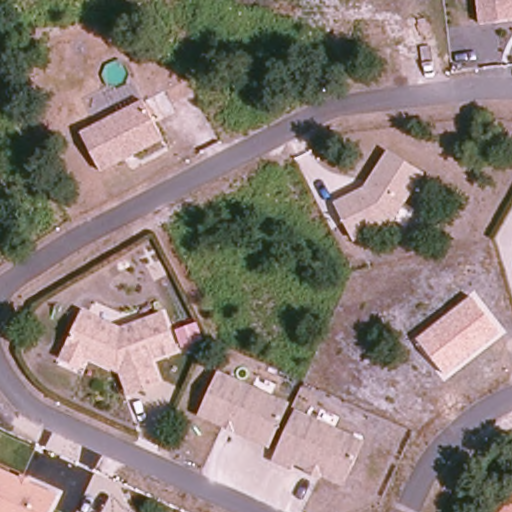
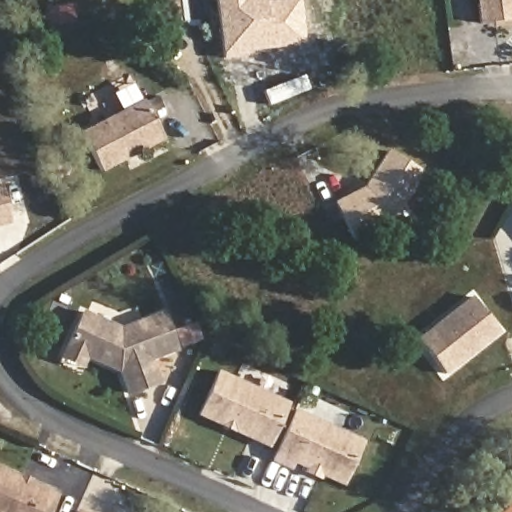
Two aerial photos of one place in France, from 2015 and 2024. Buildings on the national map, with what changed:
new [(305,44),(245,51),(246,56),(222,59),(216,0),(264,0),(265,1),(274,0),(299,0),(305,44)]
unchanged [(475,0),(512,0),(512,17),(477,22),(475,0)]
unchanged [(80,131),(142,97),(162,135),(100,168),(80,131)]
unchanged [(386,151),(421,173),(392,219),(353,239),(334,203),(363,188),(386,151)]
unchanged [(447,374),(416,339),(471,295),(502,332),(447,374)]
unchanged [(64,346),(78,311),(116,326),(157,310),(171,345),(146,355),(155,379),(126,390),(116,367),(109,364),(96,359),(64,346)]
unchanged [(194,419),(212,376),(282,405),(263,448),(228,433),(217,429),(194,419)]
unchanged [(292,456),(290,461),(272,454),(292,406),(360,434),(342,476),(342,477),(336,475),(319,467),(306,462),(292,456)]
unchanged [(55,493),(48,512),(0,512),(0,470),(55,493)]
unchanged [(512,512),(498,512),(512,498),(512,512)]

